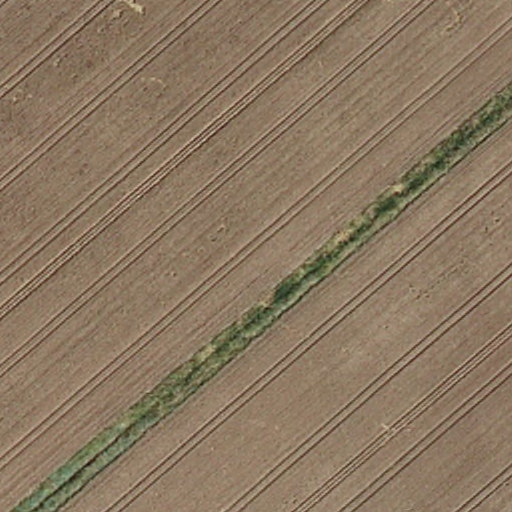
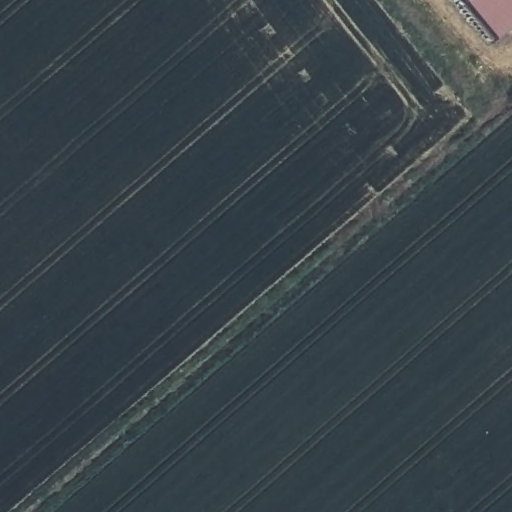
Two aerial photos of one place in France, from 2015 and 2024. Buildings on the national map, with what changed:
new [(495,42),(460,0),(512,0),(512,27),(495,42)]

